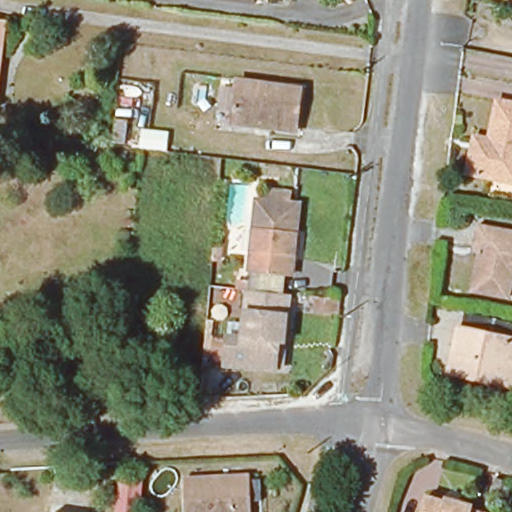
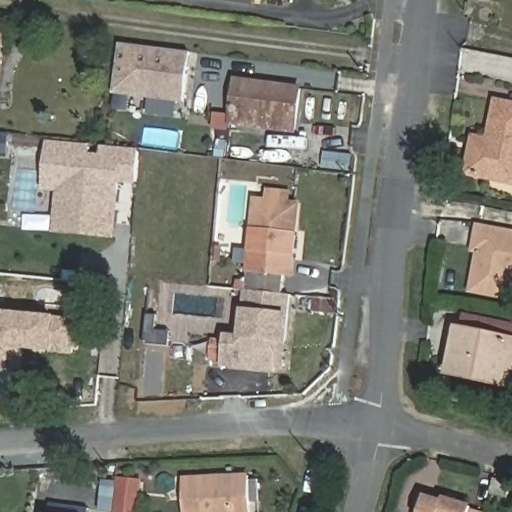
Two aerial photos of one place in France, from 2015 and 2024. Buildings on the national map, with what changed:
unchanged [(242,0),(249,0),(249,1),(242,0)]
unchanged [(9,24),(5,56),(0,55),(0,23),(9,24)]
new [(117,94),(123,44),(193,52),(187,103),(117,94)]
unchanged [(234,123),(238,85),(301,94),(295,136),(264,132),(265,127),(234,123)]
unchanged [(472,148),(487,151),(497,100),(512,103),(512,183),(467,173),(472,148)]
new [(50,143),(90,146),(89,163),(100,164),(102,148),(139,152),(136,181),(113,179),(108,234),(51,229),(55,188),(45,187),(50,143)]
unchanged [(299,208),(292,277),(249,273),(256,203),(299,208)]
unchanged [(479,231),(512,237),(512,288),(509,303),(472,295),(481,249),(476,248),(479,231)]
unchanged [(215,338),(232,339),(243,340),(247,295),(271,297),(289,299),(285,341),(279,340),(276,374),(229,370),(229,367),(213,365),(215,338)]
new [(53,353),(22,350),(20,370),(0,368),(0,312),(2,312),(58,317),(76,319),(72,355),(53,353)]
unchanged [(486,383),(452,375),(461,336),(512,346),(512,379),(488,374),(486,383)]
unchanged [(512,482),(507,498),(499,496),(490,494),(496,473),(512,478),(512,482)]
unchanged [(183,479),(249,476),(250,480),(260,480),(261,501),(250,502),(251,512),(185,512),(183,479)]
unchanged [(132,512),(120,512),(122,494),(132,495),(132,512)]
unchanged [(426,496),(444,501),(445,498),(473,506),(472,510),(479,512),(422,512),(426,496)]

